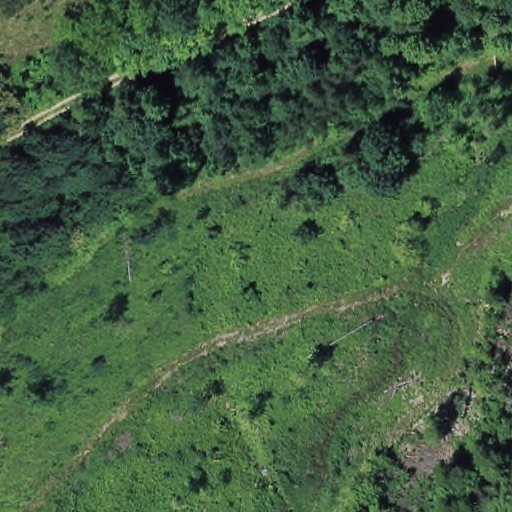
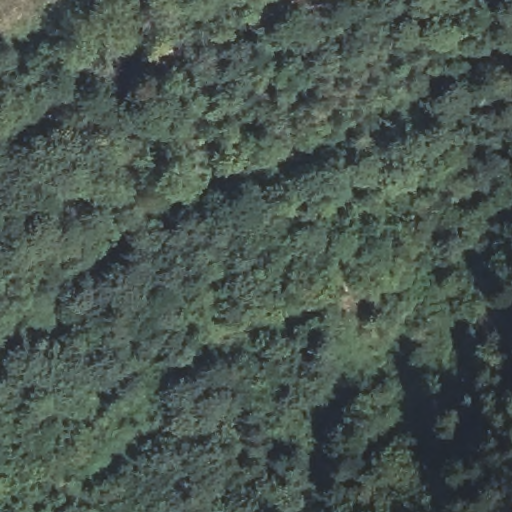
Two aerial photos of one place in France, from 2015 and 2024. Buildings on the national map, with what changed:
[]

